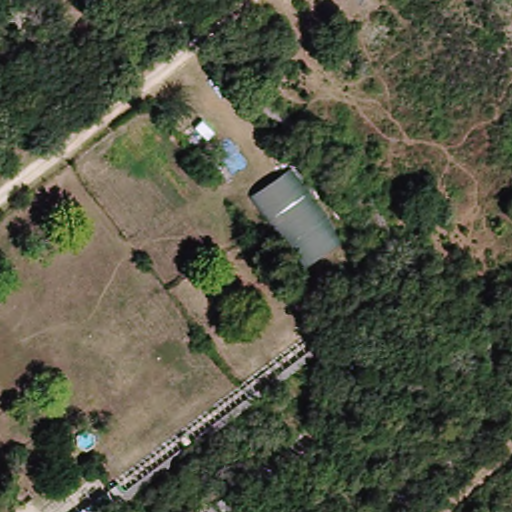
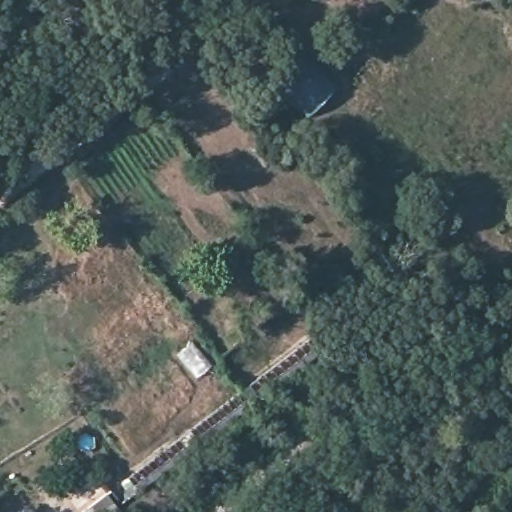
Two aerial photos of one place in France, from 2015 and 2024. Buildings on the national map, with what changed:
new [(336,89),(315,109),(280,74),(300,53),(336,89)]
demolished [(342,237),(302,267),(251,194),(290,167),(342,237)]
unchanged [(311,333),(319,343),(106,512),(87,512),(311,333)]
unchanged [(74,507),(78,512),(67,512),(74,507)]

